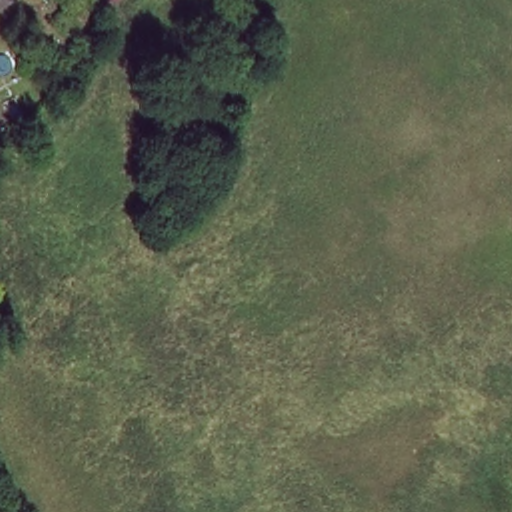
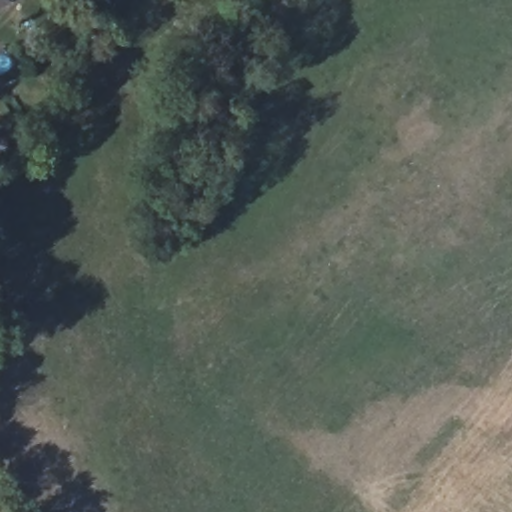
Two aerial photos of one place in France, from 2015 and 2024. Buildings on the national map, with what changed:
unchanged [(9,1),(0,6),(0,0),(8,0),(9,1)]

